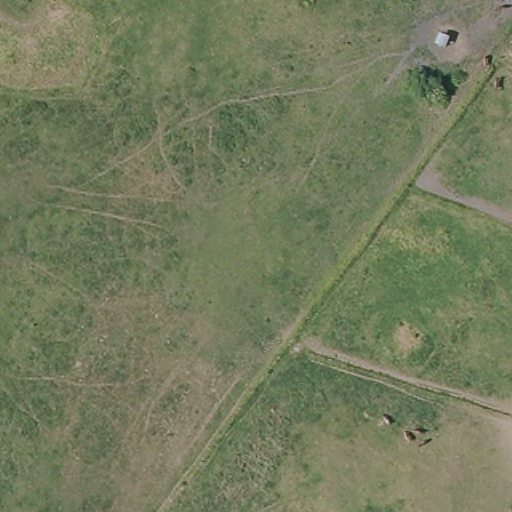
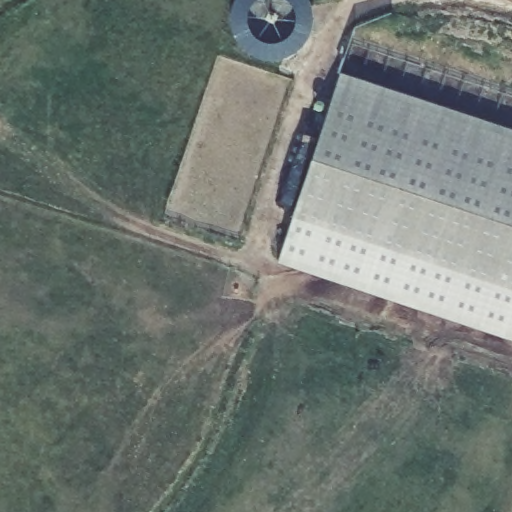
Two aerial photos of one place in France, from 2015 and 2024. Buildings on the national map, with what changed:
new [(344,62),(512,116),(512,343),(278,265),(344,62)]

